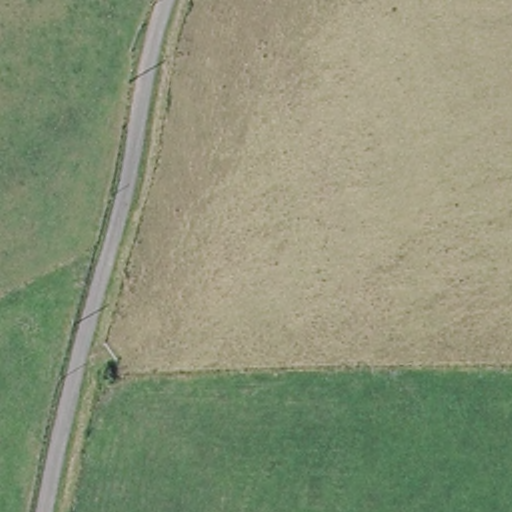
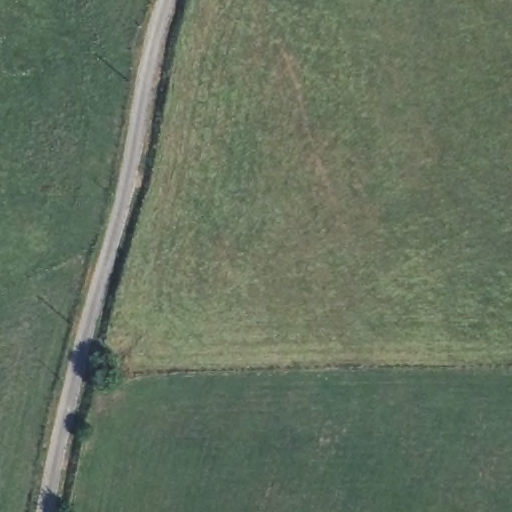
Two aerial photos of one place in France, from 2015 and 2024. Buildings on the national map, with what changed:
[]

